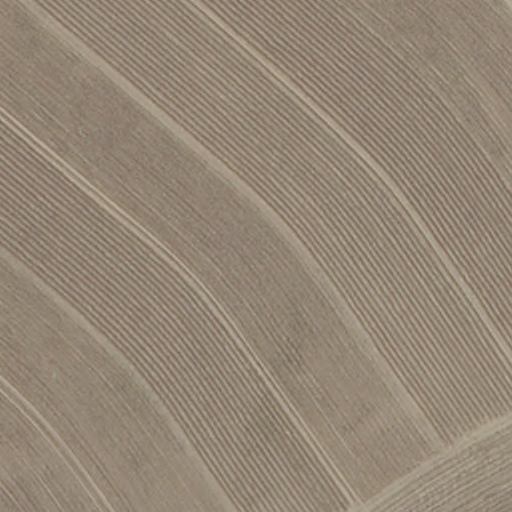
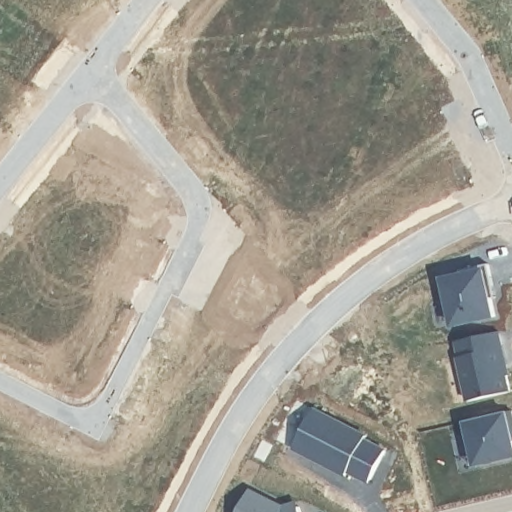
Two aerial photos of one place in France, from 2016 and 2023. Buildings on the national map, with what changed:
new [(444,279),(461,276),(459,271),(488,265),(492,287),(488,288),(494,317),(454,326),(444,279)]
new [(507,375),(505,376),(508,391),(468,401),(458,358),(459,358),(455,341),(497,332),(507,375)]
new [(314,408),(365,435),(363,439),(384,449),(368,480),(347,469),(345,473),(294,447),(314,408)]
new [(465,421),(510,410),(512,419),(512,431),(510,431),(512,440),(512,456),(475,464),(465,421)]
new [(249,488),(289,508),(298,505),(300,512),(237,512),(249,488)]

